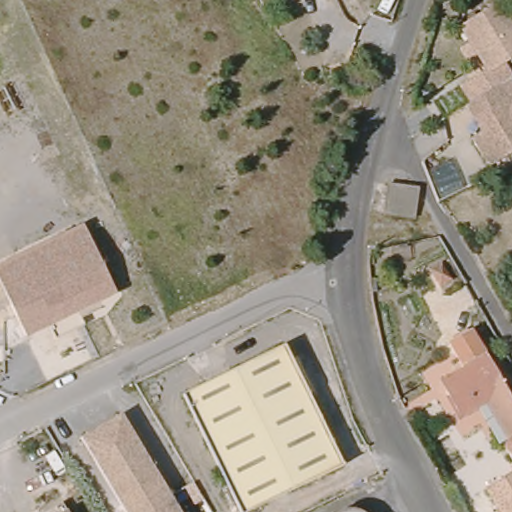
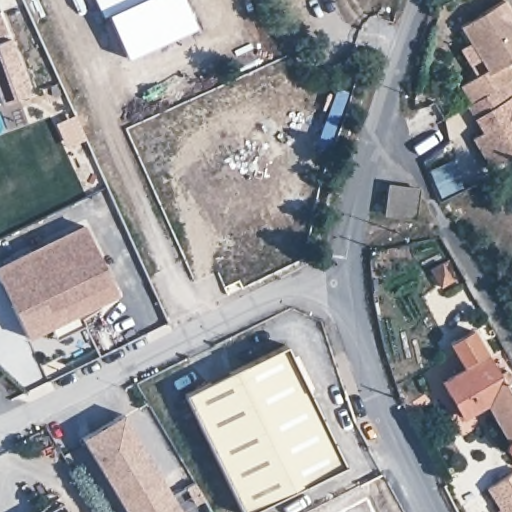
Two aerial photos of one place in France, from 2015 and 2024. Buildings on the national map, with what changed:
new [(196,26),(126,58),(105,13),(96,0),(184,0),(196,26)]
unchanged [(487,70),(465,30),(504,1),(512,15),(512,60),(508,62),(512,70),(512,79),(503,85),(474,102),(464,87),(487,70)]
new [(30,94),(3,103),(0,97),(0,13),(30,94)]
unchanged [(487,163),(473,140),(482,133),(468,106),(474,102),(503,85),(509,94),(512,93),(512,154),(497,163),(487,163)]
new [(55,123),(74,114),(86,138),(67,148),(55,123)]
unchanged [(416,189),(416,214),(392,216),(391,190),(416,189)]
unchanged [(0,276),(0,259),(88,219),(119,288),(25,330),(0,276)]
unchanged [(440,264),(452,286),(437,294),(425,272),(440,264)]
unchanged [(343,470),(253,512),(239,512),(185,394),(288,347),(343,470)]
unchanged [(454,409),(443,391),(437,380),(445,375),(485,354),(512,398),(512,449),(508,451),(501,439),(481,405),(458,417),(454,409)]
unchanged [(121,512),(78,442),(119,414),(175,512),(121,512)]
unchanged [(512,472),(512,512),(500,512),(486,487),(512,472)]
new [(375,512),(335,512),(366,495),(375,512)]
unchanged [(38,512),(58,500),(64,512),(38,512)]

